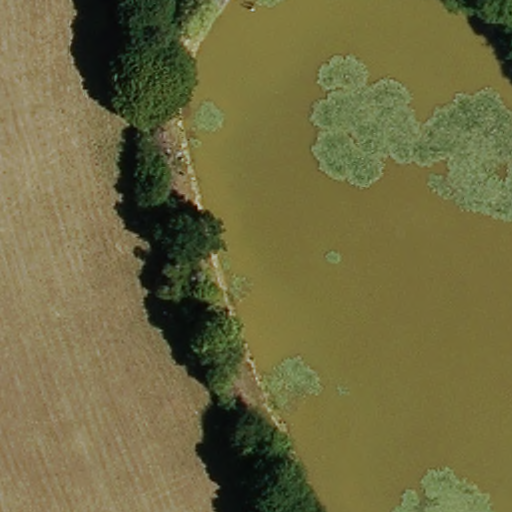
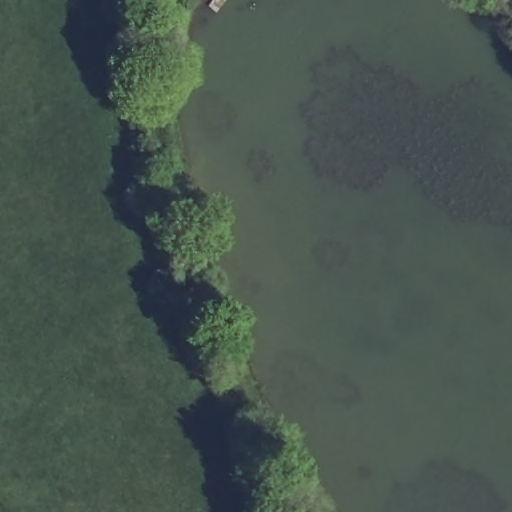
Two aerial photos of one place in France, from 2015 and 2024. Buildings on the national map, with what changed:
unchanged [(177,44),(170,70),(158,66),(164,40),(177,44)]

